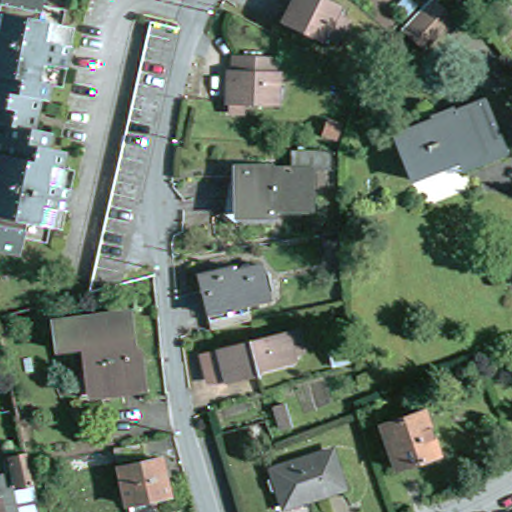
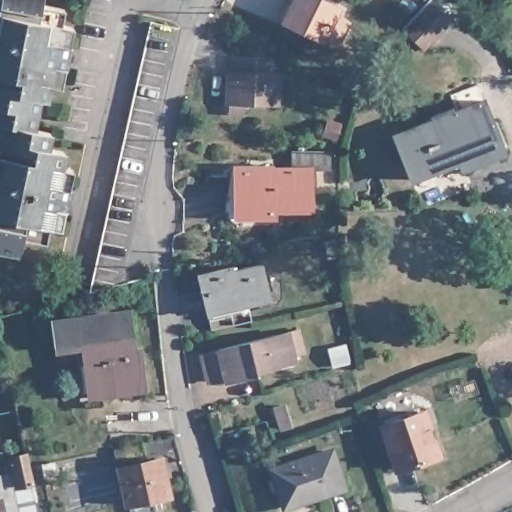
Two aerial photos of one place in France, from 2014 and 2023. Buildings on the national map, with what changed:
unchanged [(54,225),(50,240),(23,233),(19,251),(0,246),(0,118),(0,0),(48,0),(70,5),(66,21),(79,24),(75,43),(69,64),(65,84),(56,82),(52,98),(34,94),(29,123),(55,129),(51,145),(69,149),(66,163),(79,167),(75,185),(70,208),(65,228),(54,225)]
unchanged [(320,36),(319,37),(283,20),(293,0),(319,0),(334,8),(334,10),(346,21),(336,43),(320,36)]
unchanged [(446,0),(463,15),(436,45),(414,24),(436,0),(446,0)]
unchanged [(157,20),(185,27),(125,283),(94,291),(157,20)]
unchanged [(276,72),(284,73),(283,104),(251,103),(251,111),(234,111),(234,103),(232,102),(233,71),(236,71),(237,57),(277,58),(276,72)]
unchanged [(490,99),(511,152),(469,169),(465,159),(419,178),(402,133),(490,99)]
unchanged [(330,131),(334,120),(347,124),(343,136),(330,131)]
unchanged [(332,169),(315,168),(314,207),(277,207),(276,213),(239,212),(239,167),(296,169),(297,150),(333,151),(332,169)]
unchanged [(200,269),(227,264),(228,267),(264,259),(271,293),(251,298),(254,314),(212,323),(200,269)]
unchanged [(138,308),(143,348),(148,348),(151,379),(98,386),(93,341),(71,342),(68,317),(138,308)]
unchanged [(206,356),(207,351),(223,348),(292,334),(303,333),(306,353),(296,356),(298,365),(264,371),(264,374),(231,381),(229,378),(209,379),(206,356)]
unchanged [(348,351),(352,363),(340,367),(336,356),(348,351)]
unchanged [(291,404),(299,426),(289,429),(281,408),(291,404)]
unchanged [(429,421),(442,463),(402,476),(388,434),(429,421)]
unchanged [(126,451),(142,448),(146,462),(120,470),(115,453),(126,451)]
unchanged [(281,469),(291,465),(339,448),(353,487),(306,502),(294,506),(281,469)]
unchanged [(163,465),(175,500),(136,512),(134,512),(122,478),(163,465)]
unchanged [(0,491),(10,489),(13,502),(16,501),(11,472),(28,468),(30,480),(34,497),(35,499),(37,512),(0,512),(0,491)]

